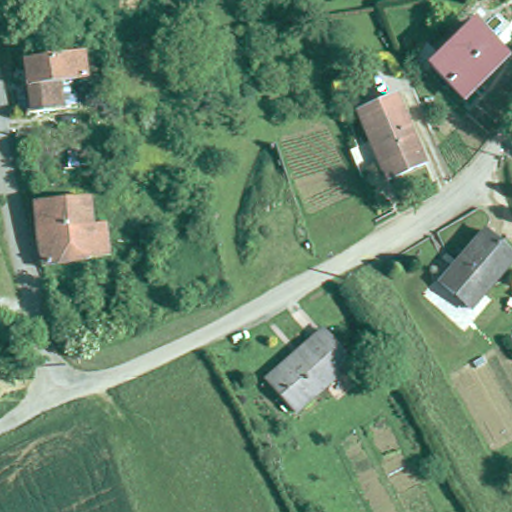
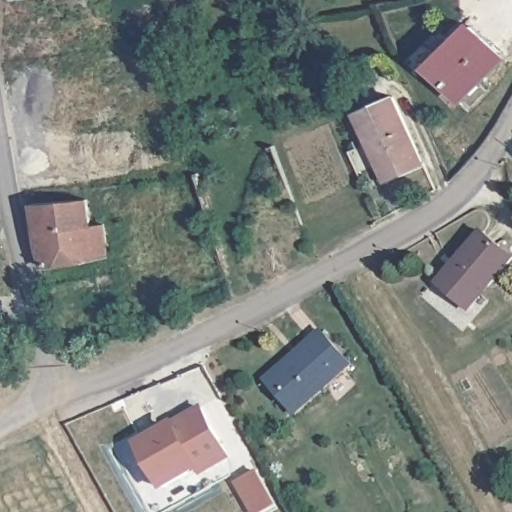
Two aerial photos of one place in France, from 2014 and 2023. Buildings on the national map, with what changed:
unchanged [(505,57),(463,99),(430,67),(473,25),(505,57)]
demolished [(82,59),(62,61),(65,86),(91,84),(94,105),(22,112),(20,91),(25,88),(20,41),(77,32),(82,59)]
unchanged [(424,165),(387,181),(357,112),(394,96),(424,165)]
unchanged [(91,225),(105,223),(109,256),(44,267),(38,247),(34,202),(89,198),(91,225)]
unchanged [(485,231),(512,254),(512,260),(468,308),(441,284),(459,265),(457,263),(485,231)]
unchanged [(117,287),(90,292),(88,279),(115,274),(117,287)]
unchanged [(320,327),(349,361),(291,408),(261,375),(320,327)]
new [(234,458),(200,477),(197,472),(161,492),(134,443),(177,420),(202,405),(234,458)]
unchanged [(255,446),(263,441),(270,453),(262,458),(255,446)]
new [(260,472),(279,505),(263,512),(252,512),(237,484),(260,472)]

